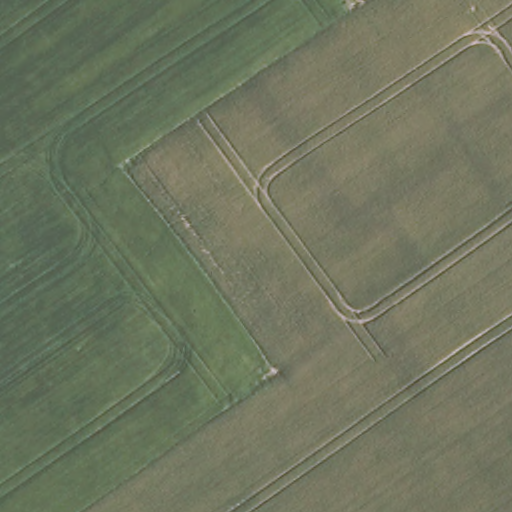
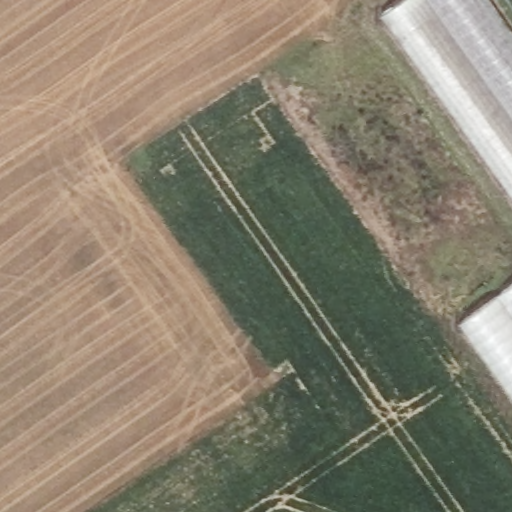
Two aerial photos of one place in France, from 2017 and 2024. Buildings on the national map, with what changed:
new [(399,0),(491,0),(512,29),(512,193),(381,12),(399,0)]
new [(512,283),(512,393),(460,321),(512,283)]

